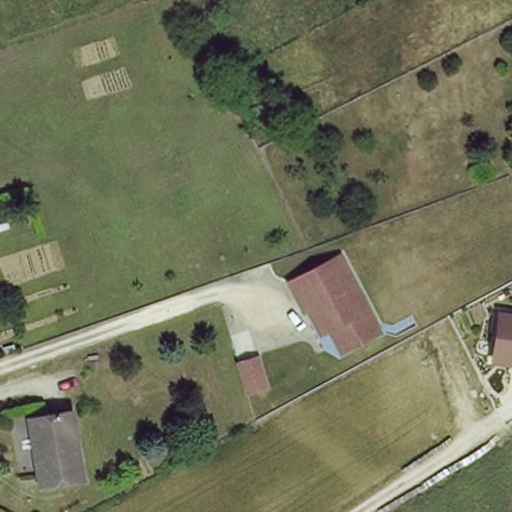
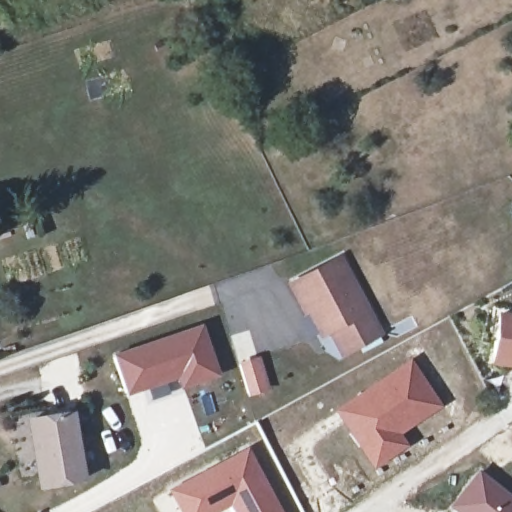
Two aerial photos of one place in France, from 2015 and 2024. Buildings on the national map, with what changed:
unchanged [(366,341),(348,351),(335,329),(326,334),(312,309),(308,311),(293,284),(341,255),(381,323),(385,330),(366,341)]
unchanged [(496,363),(501,309),(512,311),(512,365),(496,363)]
new [(202,328),(217,376),(184,387),(180,375),(123,393),(112,355),(202,328)]
new [(411,356),(443,405),(403,433),(411,446),(373,470),(332,408),(411,356)]
unchanged [(261,388),(242,395),(232,367),(251,360),(261,388)]
unchanged [(87,479),(43,487),(33,435),(30,419),(47,416),(75,411),(87,479)]
new [(249,445),(285,512),(230,512),(229,508),(222,512),(178,512),(165,488),(249,445)]
new [(512,495),(512,512),(453,512),(447,506),(479,468),(512,495)]

